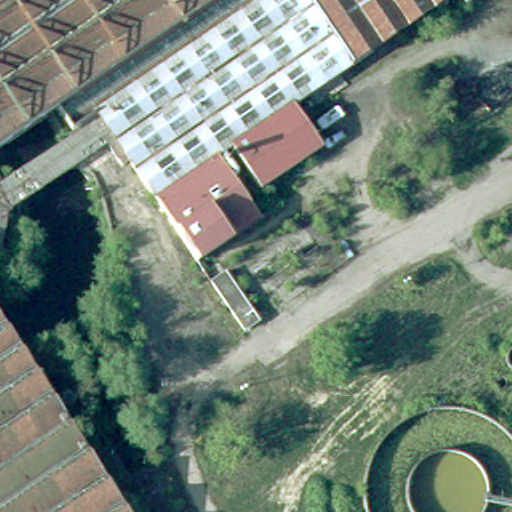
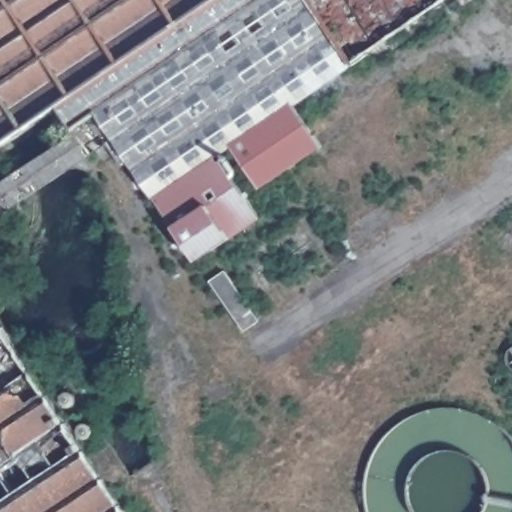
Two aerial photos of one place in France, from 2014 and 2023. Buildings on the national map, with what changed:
unchanged [(55,138),(38,115),(0,140),(0,0),(432,0),(283,102),(312,146),(250,189),(221,144),(208,154),(252,218),(190,261),(121,161),(113,166),(97,142),(70,161),(12,201),(0,209),(0,176),(55,138)]
unchanged [(459,0),(461,0),(460,1),(459,0)]
unchanged [(254,323),(242,331),(207,280),(220,271),(254,323)]
unchanged [(18,360),(72,441),(90,429),(100,446),(83,456),(122,512),(0,512),(0,332),(18,360)]
unchanged [(506,365),(505,359),(506,352),(510,348),(512,347),(512,370),(510,370),(506,365)]

